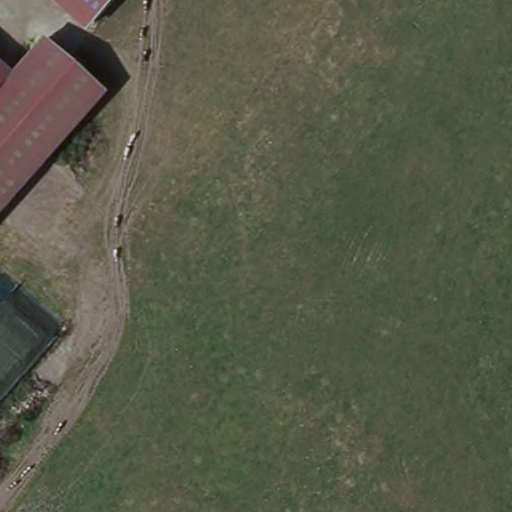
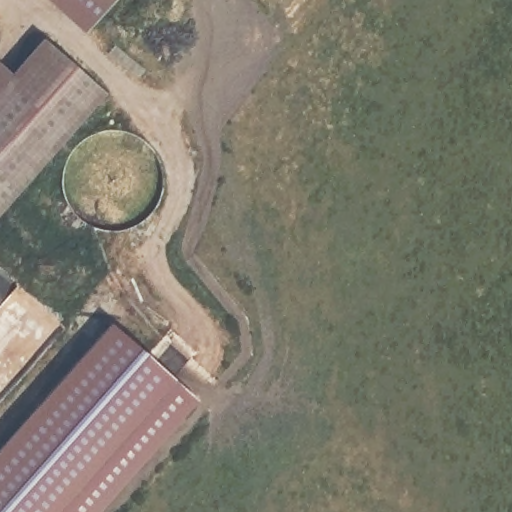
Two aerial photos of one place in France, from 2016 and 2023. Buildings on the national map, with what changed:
unchanged [(85,34),(47,0),(114,0),(85,34)]
unchanged [(47,36),(109,90),(0,213),(0,69),(9,75),(47,36)]
new [(202,400),(104,512),(0,512),(0,446),(112,318),(202,400)]

